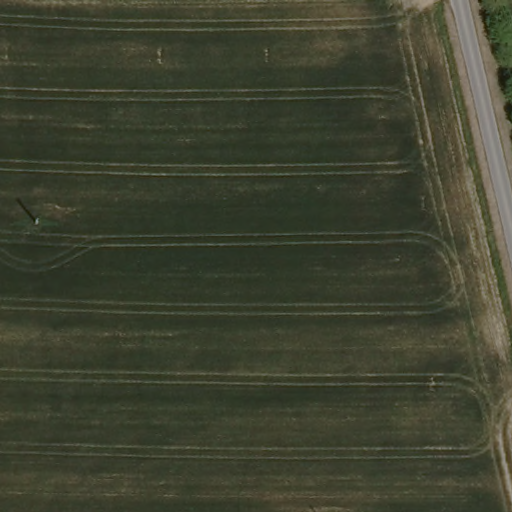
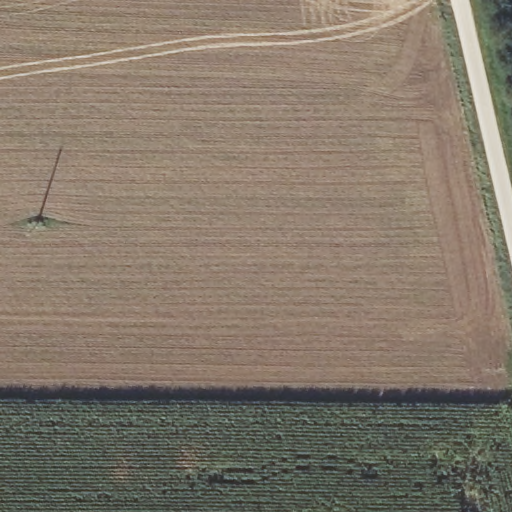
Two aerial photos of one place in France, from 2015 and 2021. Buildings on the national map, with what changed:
unchanged [(0,0),(5,0),(4,5),(0,4),(0,0)]

